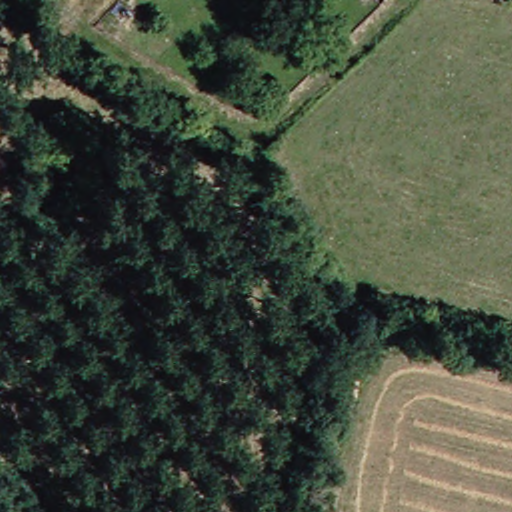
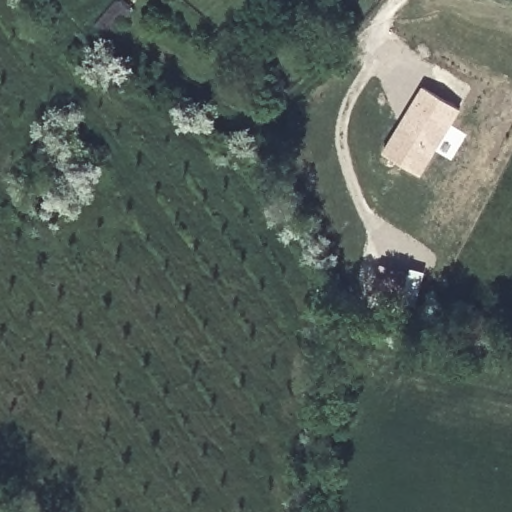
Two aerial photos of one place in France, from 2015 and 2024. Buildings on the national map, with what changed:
new [(421,175),(382,152),(422,85),(462,110),(421,175)]

